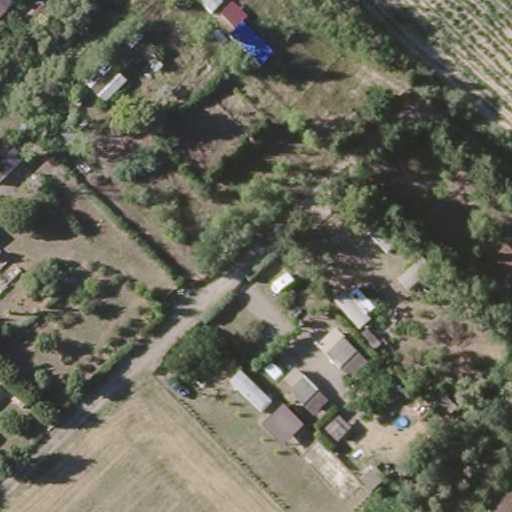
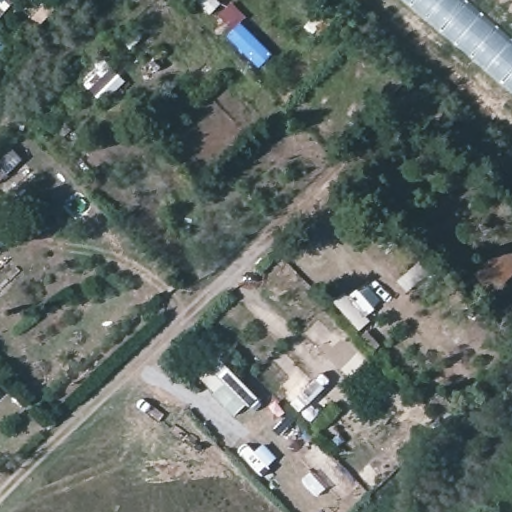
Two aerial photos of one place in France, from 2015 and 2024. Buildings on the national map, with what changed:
unchanged [(19,0),(20,1),(0,20),(0,0),(19,0)]
new [(404,0),(465,0),(512,40),(512,92),(404,0)]
unchanged [(103,57),(131,86),(104,109),(76,80),(103,57)]
unchanged [(512,265),(512,277),(494,294),(471,273),(497,251),(512,265)]
unchanged [(340,335),(366,361),(351,381),(320,350),(340,335)]
unchanged [(327,404),(305,422),(274,392),(298,372),(327,404)]

